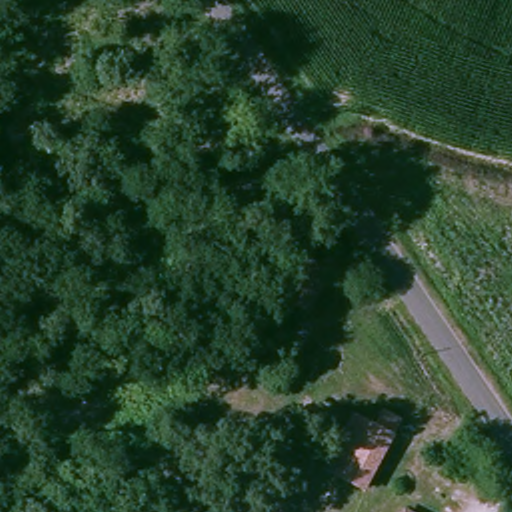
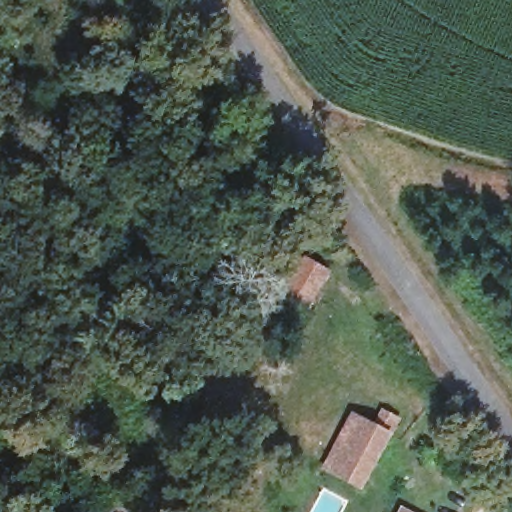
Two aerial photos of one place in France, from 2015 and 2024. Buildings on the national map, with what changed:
unchanged [(312,313),(282,295),(308,252),(336,270),(312,313)]
new [(363,492),(323,470),(353,412),(373,423),(383,410),(401,420),(394,436),(363,492)]
demolished [(374,416),(403,433),(373,490),(342,475),(374,416)]
unchanged [(406,512),(403,512),(404,511),(406,512)]

